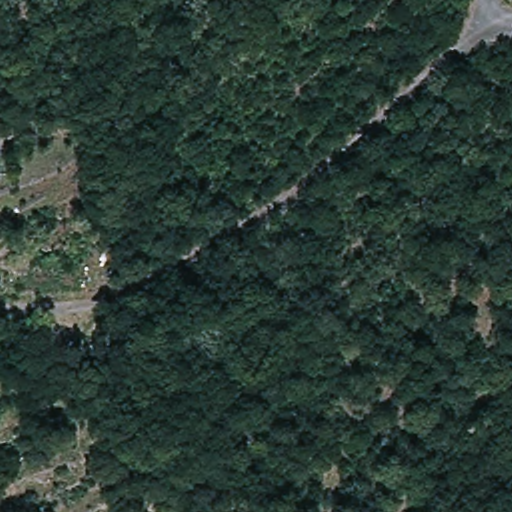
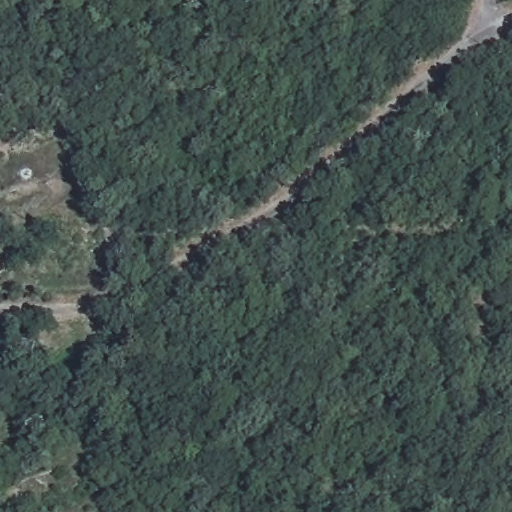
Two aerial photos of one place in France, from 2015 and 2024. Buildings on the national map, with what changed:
[]

